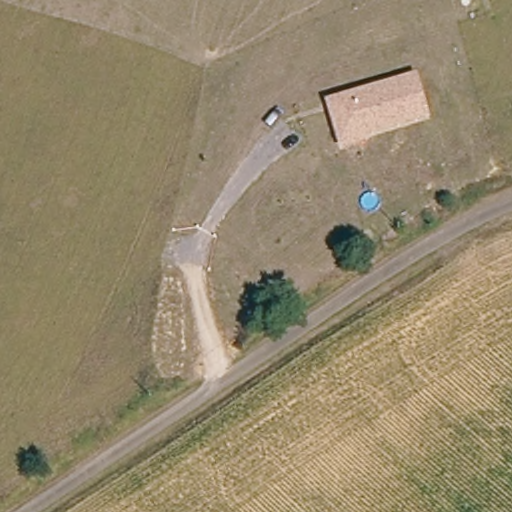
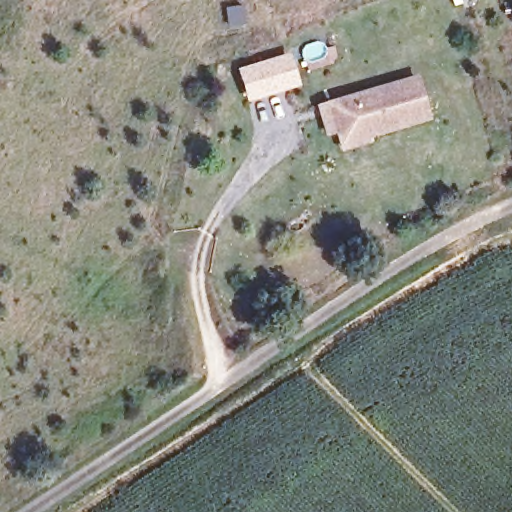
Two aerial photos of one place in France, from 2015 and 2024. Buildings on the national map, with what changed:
new [(248,102),(238,69),(290,53),(300,86),(248,102)]
unchanged [(370,139),(371,143),(341,151),(326,103),(417,76),(430,121),(370,139)]

